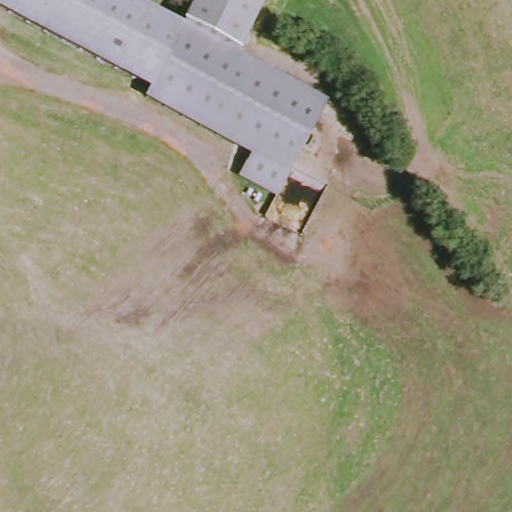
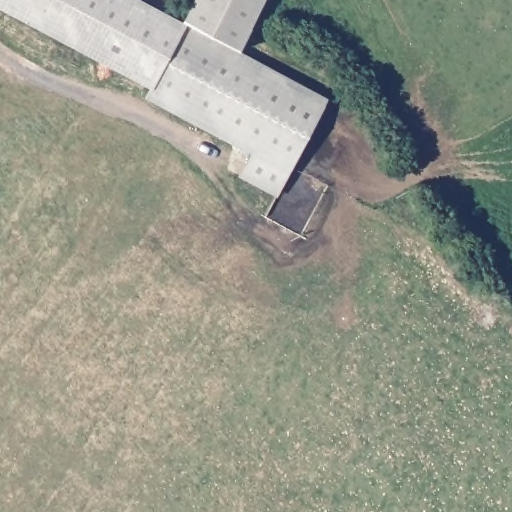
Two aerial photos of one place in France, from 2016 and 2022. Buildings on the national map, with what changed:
unchanged [(107,0),(176,59),(162,85),(0,2),(0,0),(107,0)]
unchanged [(189,22),(195,24),(176,59),(107,0),(143,0),(158,8),(189,22)]
unchanged [(333,97),(300,164),(176,59),(195,24),(189,22),(200,1),(207,4),(209,0),(271,0),(245,49),(333,97)]
unchanged [(200,1),(201,0),(209,0),(207,4),(200,1)]
unchanged [(300,164),(287,188),(250,168),(261,146),(158,93),(162,85),(176,59),(300,164)]

